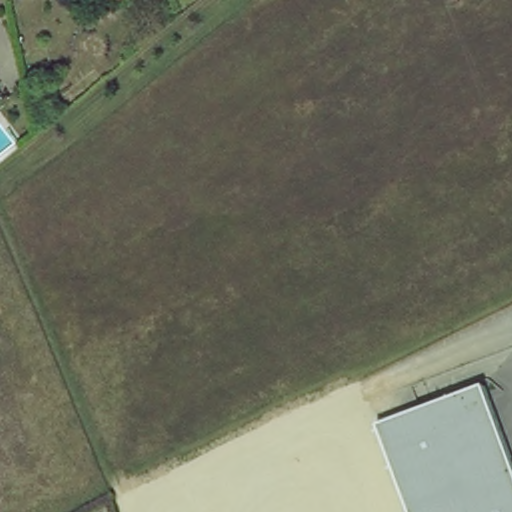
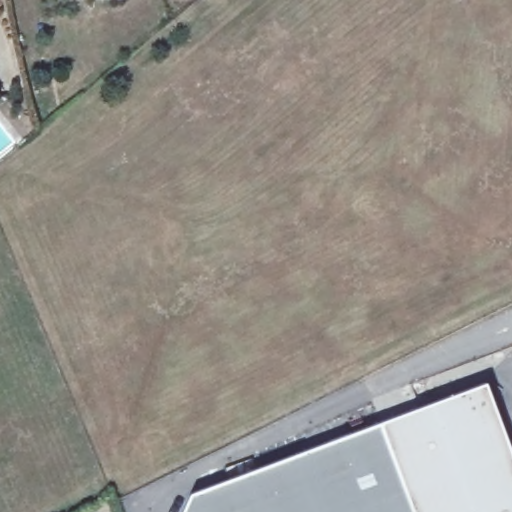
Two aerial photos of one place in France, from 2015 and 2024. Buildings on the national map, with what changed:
unchanged [(512,464),(512,512),(409,512),(376,427),(481,385),(512,464)]
new [(183,512),(189,497),(376,427),(409,512),(183,512)]

